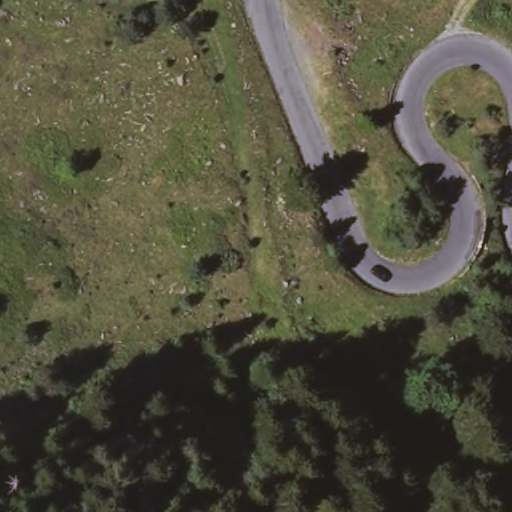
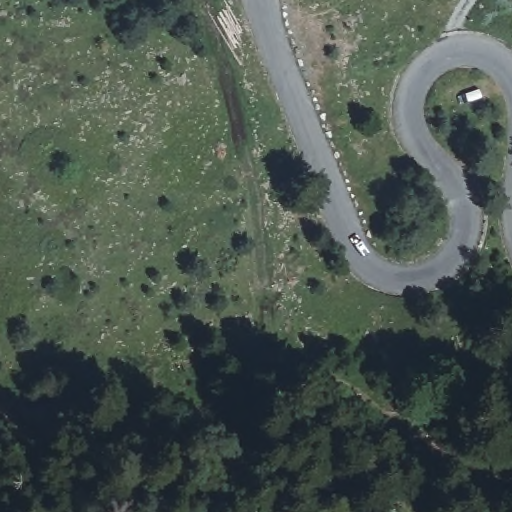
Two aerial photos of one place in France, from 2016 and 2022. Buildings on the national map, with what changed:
[]

